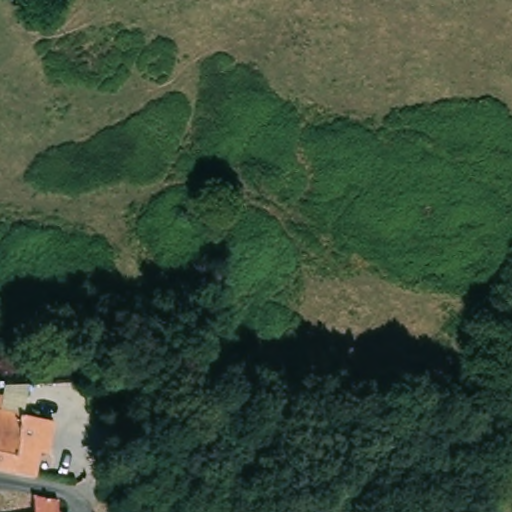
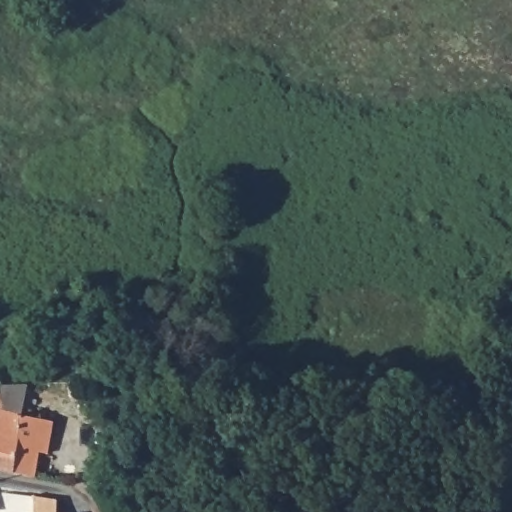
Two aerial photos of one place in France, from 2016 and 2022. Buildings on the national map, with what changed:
unchanged [(53,422),(47,454),(39,452),(33,477),(0,469),(0,412),(53,422)]
unchanged [(55,500),(54,512),(34,512),(32,496),(55,500)]

